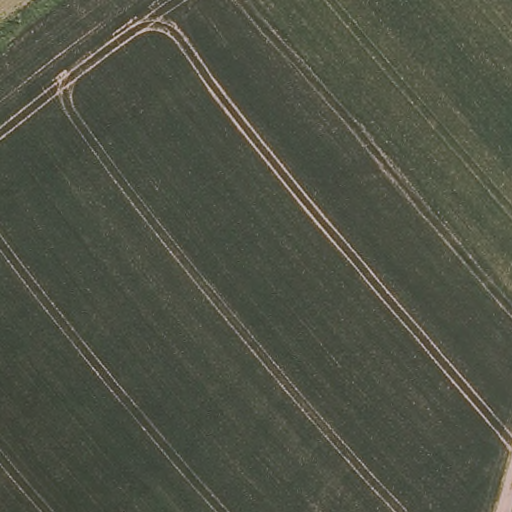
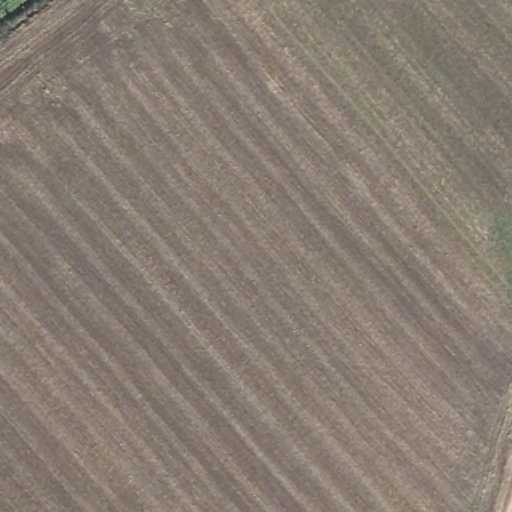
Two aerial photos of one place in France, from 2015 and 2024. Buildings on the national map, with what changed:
[]

